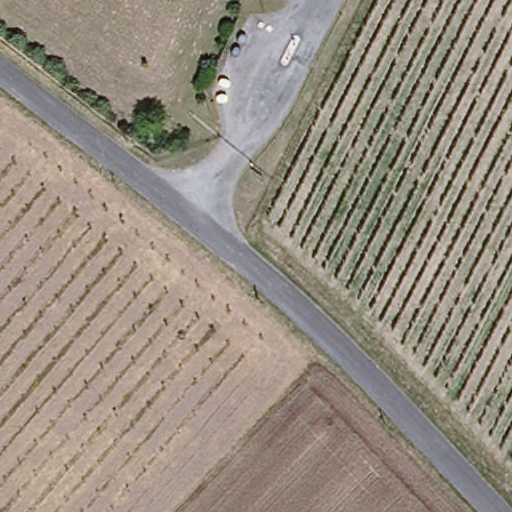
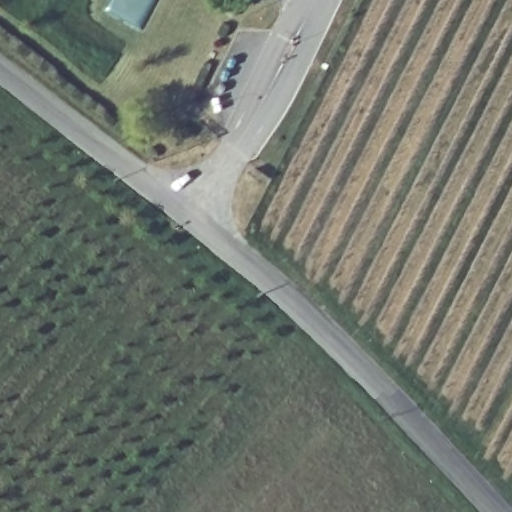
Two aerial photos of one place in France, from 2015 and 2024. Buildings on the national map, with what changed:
[]

